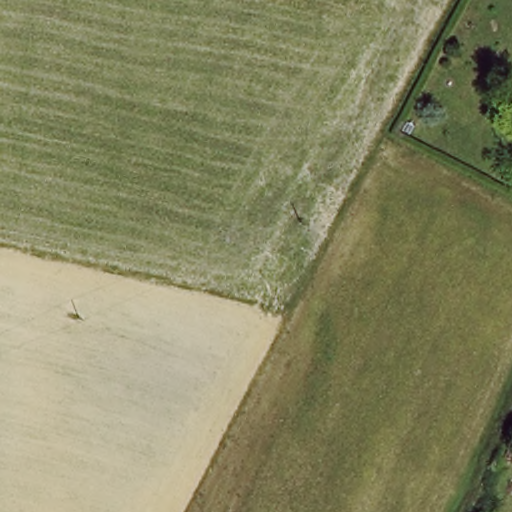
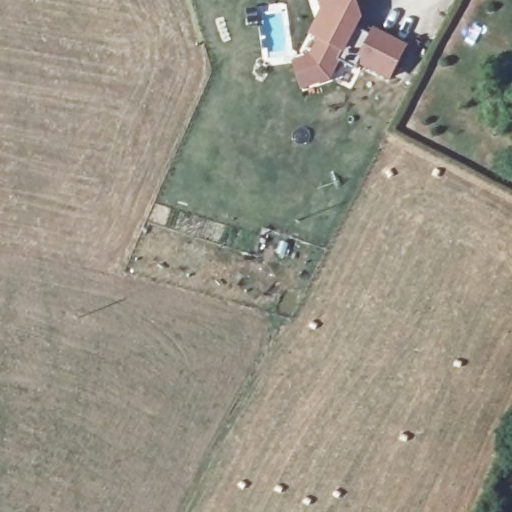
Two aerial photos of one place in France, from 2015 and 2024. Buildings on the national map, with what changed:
new [(365,21),(359,31),(372,37),(375,29),(410,46),(392,83),(358,65),(355,70),(342,63),(332,82),(303,91),(293,63),(310,56),(320,41),(310,36),(323,10),(318,1),(322,0),(367,0),(360,3),(365,21)]

